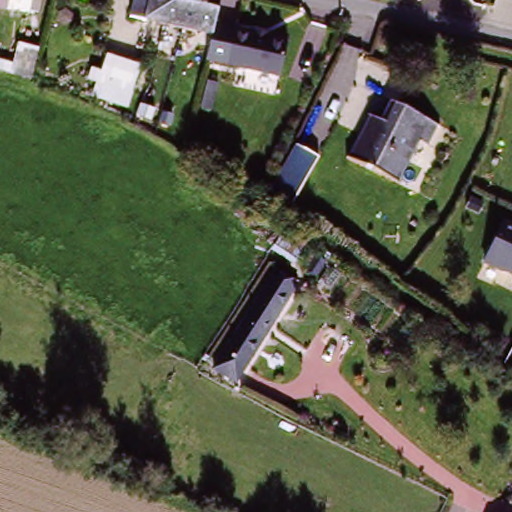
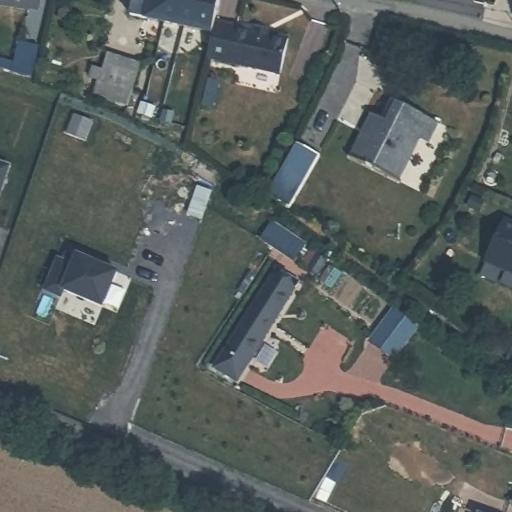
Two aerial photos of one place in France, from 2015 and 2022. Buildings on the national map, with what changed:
unchanged [(15,11),(16,0),(33,0),(31,13),(15,11)]
unchanged [(151,18),(137,14),(139,0),(224,0),(214,40),(150,25),(151,18)]
unchanged [(209,62),(217,29),(254,39),(255,35),(270,39),(269,43),(286,47),(278,80),(209,62)]
unchanged [(11,41),(31,48),(22,78),(2,73),(11,41)]
unchanged [(141,74),(135,94),(105,86),(111,65),(141,74)]
unchanged [(345,158),(375,95),(423,119),(432,124),(422,144),(413,139),(393,182),(345,158)]
unchanged [(290,204),(270,197),(291,140),(311,148),(290,204)]
new [(8,169),(0,197),(0,166),(8,169)]
unchanged [(502,219),(512,224),(512,276),(483,264),(502,219)]
new [(61,260),(76,267),(80,257),(120,274),(105,309),(66,291),(63,298),(47,291),(61,260)]
unchanged [(300,272),(251,360),(250,363),(225,348),(278,258),(300,272)]
new [(391,313),(417,328),(396,362),(371,347),(391,313)]
new [(512,370),(505,366),(512,354),(512,370)]

